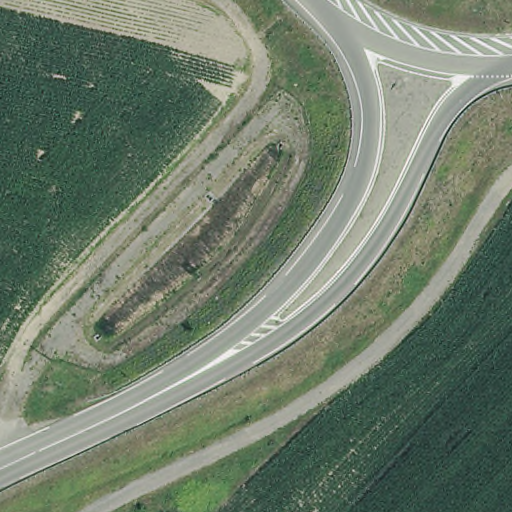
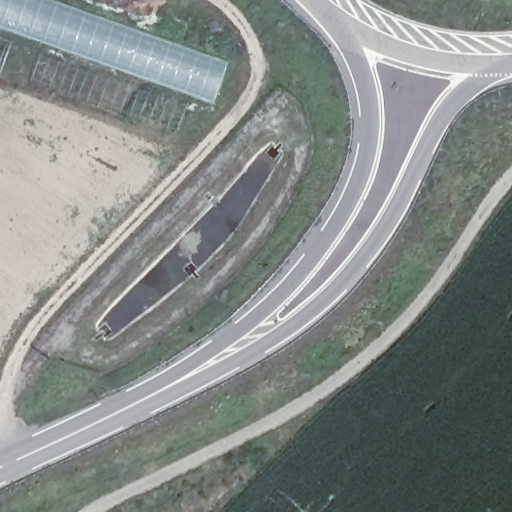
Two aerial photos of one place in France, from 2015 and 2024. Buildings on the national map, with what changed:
new [(213,105),(0,29),(0,0),(53,0),(228,62),(213,105)]

